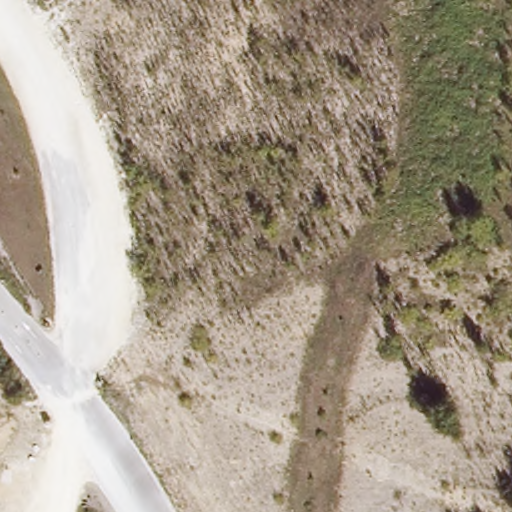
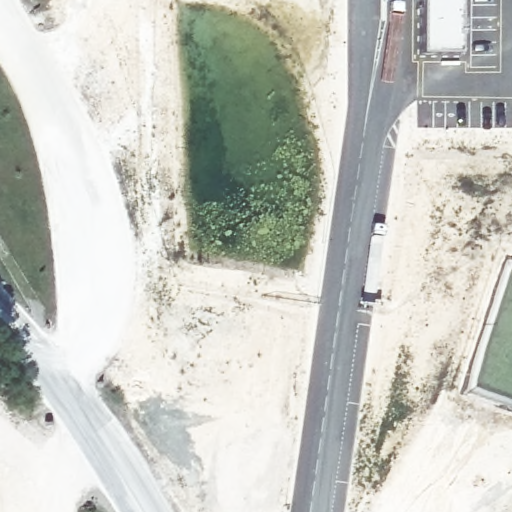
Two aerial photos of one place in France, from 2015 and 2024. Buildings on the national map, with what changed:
new [(462,0),(461,54),(420,54),(421,0),(462,0)]

